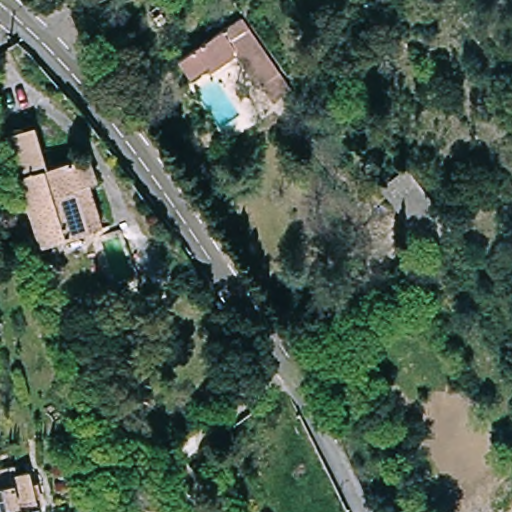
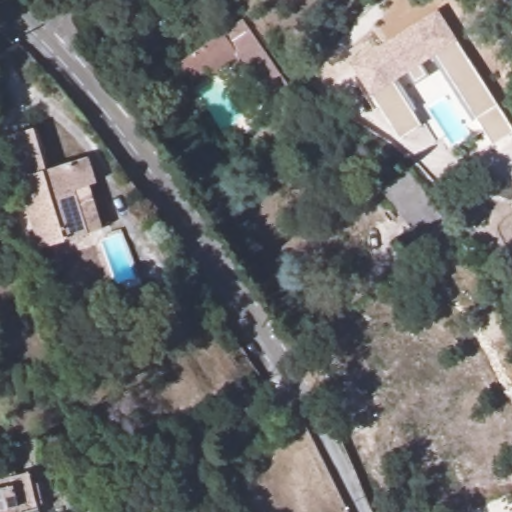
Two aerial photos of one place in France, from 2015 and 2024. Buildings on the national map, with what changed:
new [(436,10),(496,106),(512,130),(512,132),(492,145),(476,119),(471,121),(431,57),(420,65),(428,76),(414,85),(406,73),(396,80),(415,110),(412,111),(421,125),(398,139),(371,94),(370,95),(351,64),(436,10)]
unchanged [(181,61),(246,20),(291,90),(276,105),(263,85),(260,87),(235,52),(193,80),(181,61)]
unchanged [(31,129),(43,171),(85,159),(93,184),(73,190),(87,235),(36,251),(3,140),(31,129)]
unchanged [(407,170),(450,224),(425,245),(381,187),(407,170)]
unchanged [(273,413),(269,406),(265,397),(284,388),(289,396),(293,404),(273,413)]
unchanged [(0,512),(0,472),(10,470),(13,478),(25,475),(30,502),(13,506),(14,511),(12,512),(0,512)]

